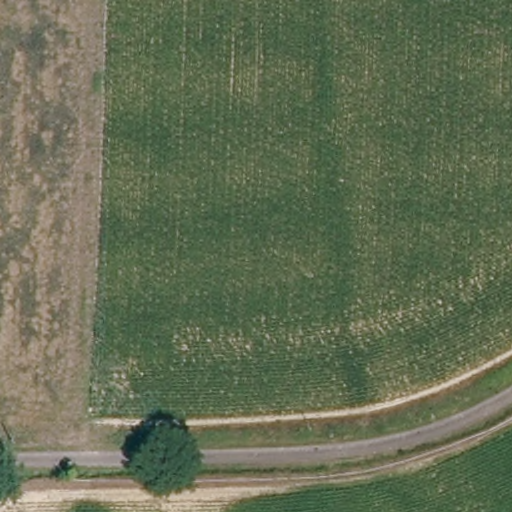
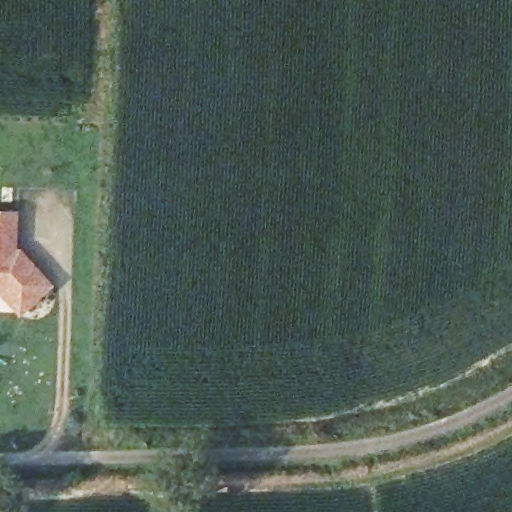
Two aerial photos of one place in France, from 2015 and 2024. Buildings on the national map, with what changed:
new [(0,297),(0,210),(16,210),(15,248),(18,247),(51,285),(17,316),(0,297)]

